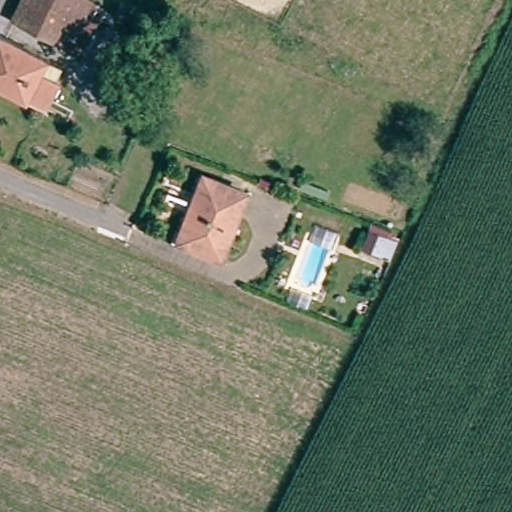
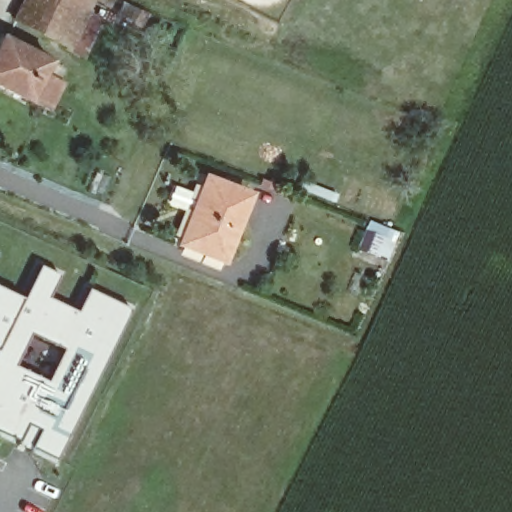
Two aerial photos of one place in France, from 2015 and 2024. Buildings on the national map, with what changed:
unchanged [(23,0),(92,0),(131,21),(125,30),(105,24),(88,60),(15,15),(23,0)]
unchanged [(0,35),(51,59),(46,72),(64,82),(50,111),(0,85),(0,35)]
unchanged [(209,176),(252,195),(223,259),(181,240),(209,176)]
new [(36,266),(58,275),(47,298),(75,312),(88,290),(129,308),(55,458),(32,447),(18,441),(0,432),(0,289),(20,299),(36,266)]

